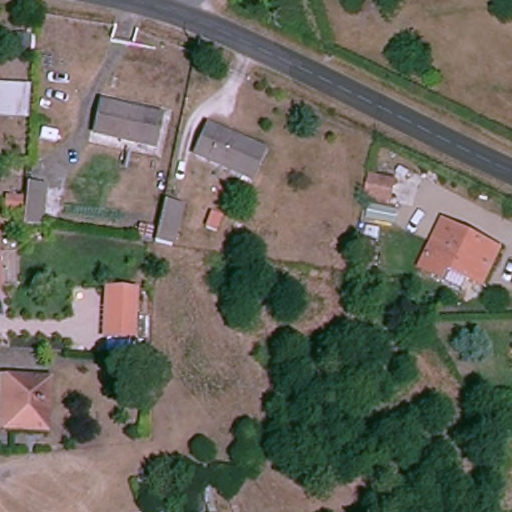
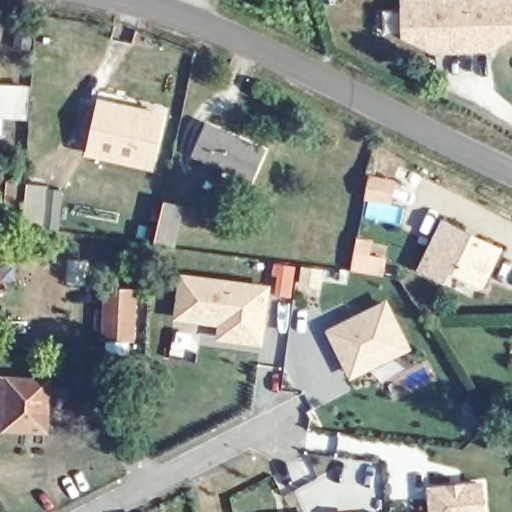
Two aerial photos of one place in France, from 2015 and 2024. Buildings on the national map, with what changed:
new [(491,50),(405,50),(401,0),(512,0),(512,39),(491,50)]
unchanged [(18,114),(0,113),(0,86),(20,87),(18,114)]
unchanged [(160,116),(154,147),(95,135),(102,104),(160,116)]
unchanged [(265,150),(253,180),(198,155),(211,126),(265,150)]
unchanged [(395,182),(391,202),(364,197),(369,176),(395,182)]
unchanged [(19,221),(22,181),(39,182),(36,223),(19,221)]
unchanged [(149,237),(158,197),(159,197),(177,201),(168,241),(149,237)]
unchanged [(499,251),(483,283),(449,267),(444,278),(423,267),(444,224),(499,251)]
new [(273,283),(264,345),(216,338),(219,325),(174,319),(180,271),(273,283)]
unchanged [(134,291),(131,338),(104,337),(106,290),(134,291)]
new [(389,298),(412,349),(351,379),(325,328),(389,298)]
unchanged [(3,430),(5,378),(49,381),(46,432),(3,430)]
new [(486,481),(488,512),(429,512),(428,485),(486,481)]

